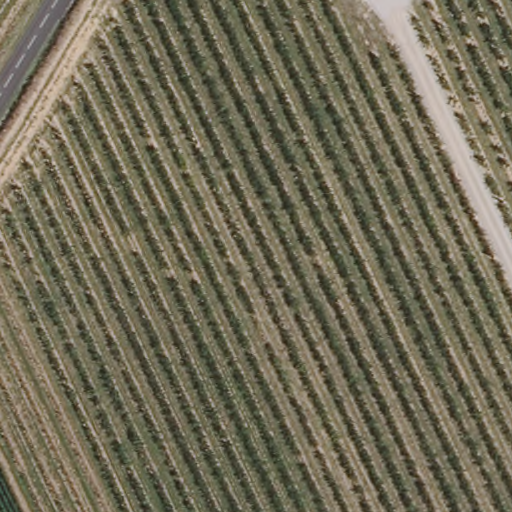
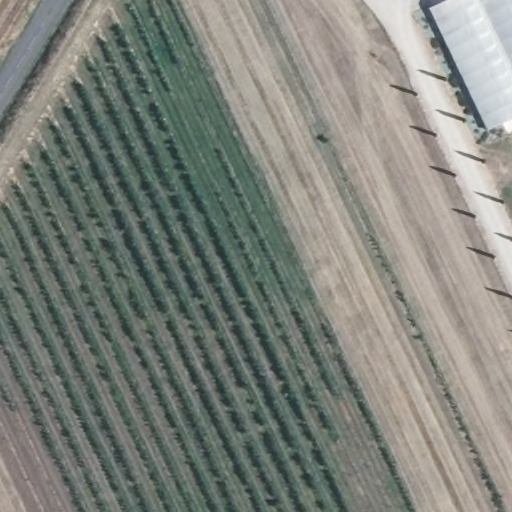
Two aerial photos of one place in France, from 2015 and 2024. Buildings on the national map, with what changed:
new [(445,0),(512,0),(512,120),(488,131),(429,8),(445,0)]

